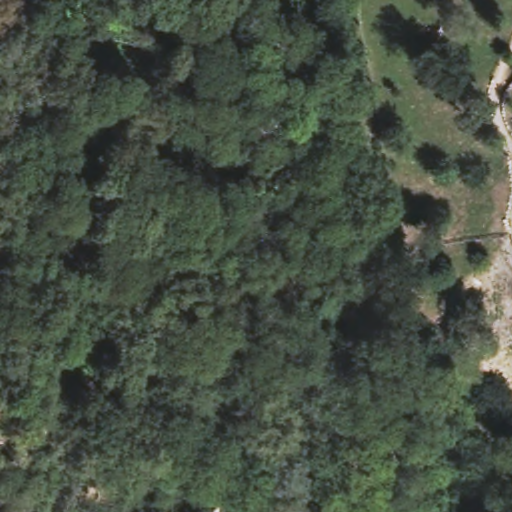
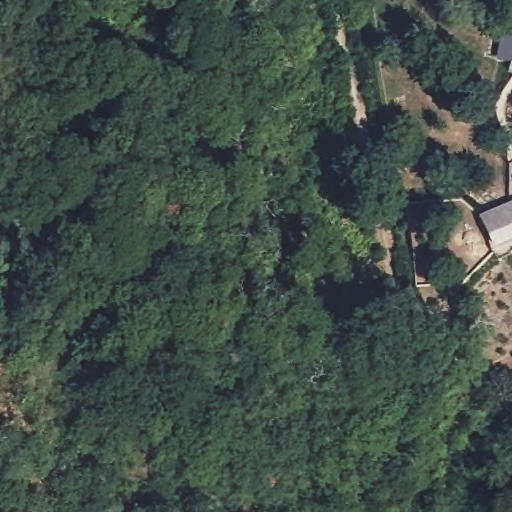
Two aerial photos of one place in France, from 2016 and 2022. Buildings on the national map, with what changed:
new [(512,258),(499,265),(480,222),(512,208),(512,258)]

